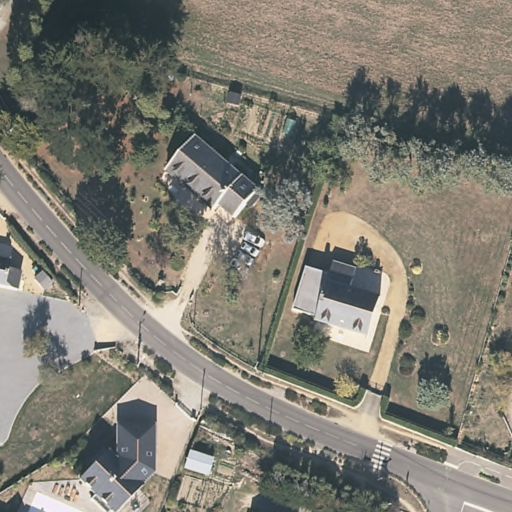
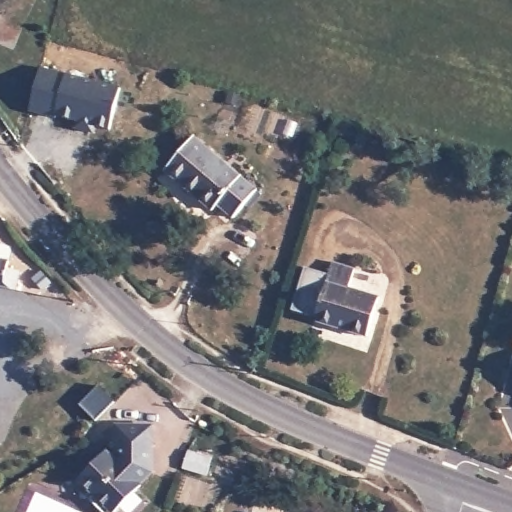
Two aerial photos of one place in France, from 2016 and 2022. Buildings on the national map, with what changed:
new [(110,130),(95,126),(95,133),(76,128),(79,121),(57,115),(56,118),(30,111),(42,67),(121,88),(110,130)]
unchanged [(258,190),(236,218),(220,204),(214,211),(165,172),(194,137),(258,190)]
unchanged [(10,266),(20,269),(16,290),(0,286),(0,258),(10,260),(10,266)]
unchanged [(356,270),(351,289),(380,299),(368,337),(316,322),(317,318),(293,311),(306,267),(330,275),(333,262),(356,270)]
unchanged [(53,285),(45,291),(36,280),(45,274),(53,285)]
unchanged [(115,456),(116,455),(116,436),(116,422),(154,423),(154,432),(153,446),(144,445),(143,461),(154,469),(141,482),(142,483),(115,511),(111,508),(108,512),(106,512),(90,497),(95,492),(79,477),(107,448),(115,456)]

